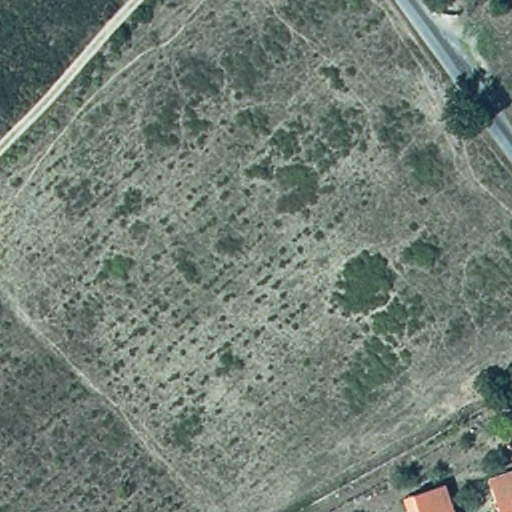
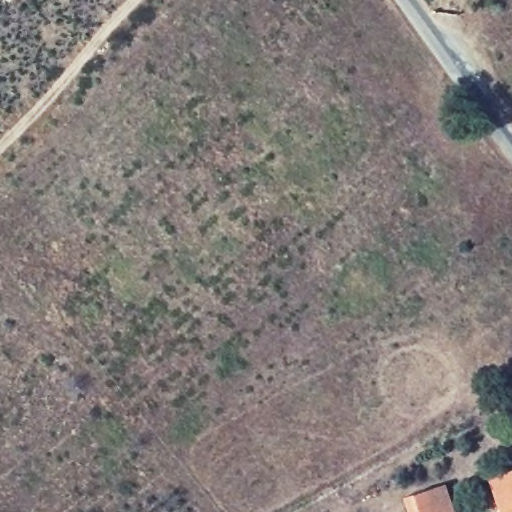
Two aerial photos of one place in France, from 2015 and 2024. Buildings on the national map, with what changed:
unchanged [(487,479),(512,472),(512,512),(496,512),(487,479)]
unchanged [(451,512),(402,512),(399,504),(443,489),(451,512)]

